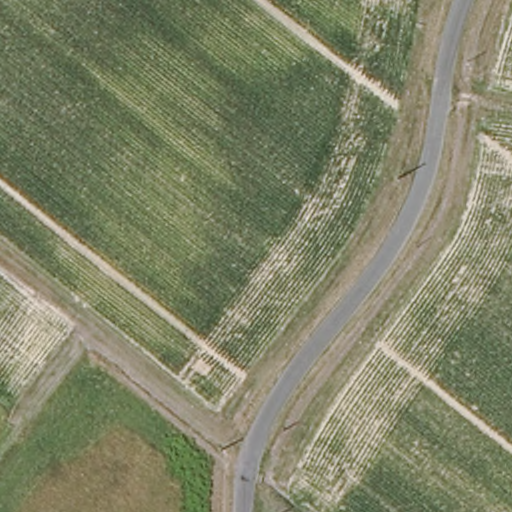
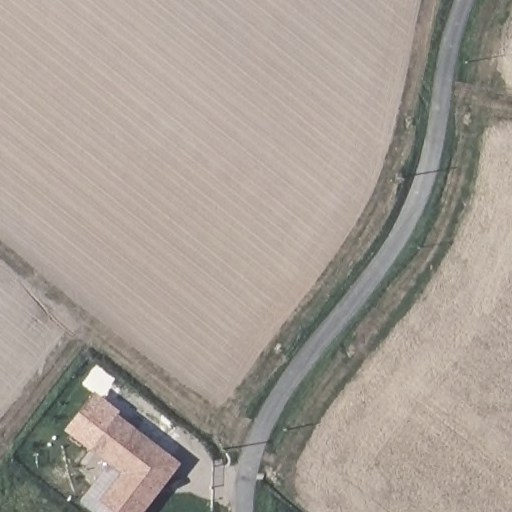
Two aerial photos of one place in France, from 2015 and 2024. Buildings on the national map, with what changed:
new [(144,512),(111,512),(100,503),(100,492),(91,485),(107,465),(87,448),(115,412),(181,463),(144,512)]

